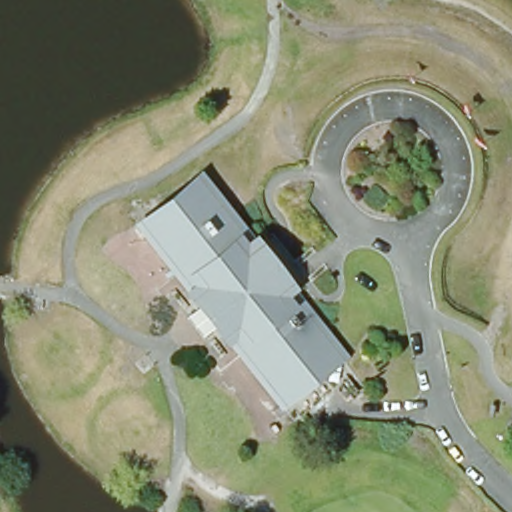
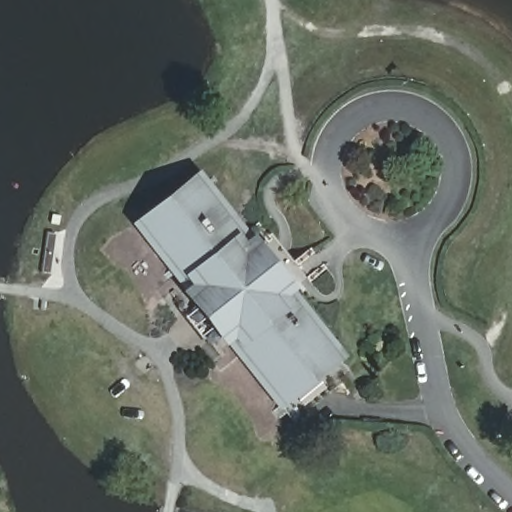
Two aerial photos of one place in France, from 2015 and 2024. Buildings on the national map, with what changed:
unchanged [(233,347),(221,331),(220,331),(192,295),(182,282),(186,279),(143,225),(151,219),(159,212),(157,209),(179,192),(181,195),(182,195),(193,186),(201,180),(206,187),(243,233),(247,229),(249,231),(257,241),(259,243),(288,280),(299,293),(293,298),(318,328),(333,347),(337,353),(327,361),(320,367),(322,370),(307,382),(299,388),(297,385),(289,391),(281,399),(236,344),(233,347)]

